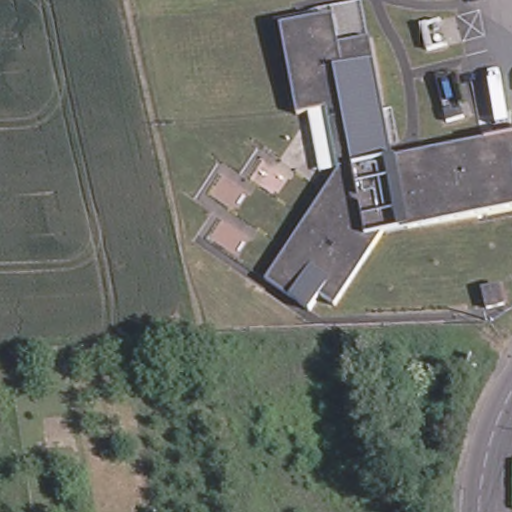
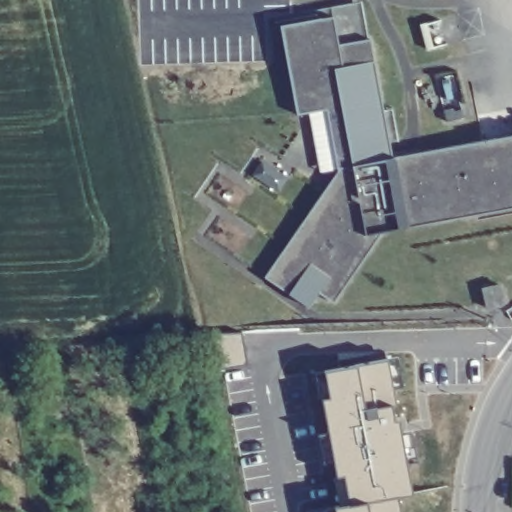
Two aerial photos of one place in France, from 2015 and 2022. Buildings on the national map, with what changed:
unchanged [(329,108),(300,113),(295,93),(291,93),(278,20),(291,18),(293,21),(326,16),(326,6),(363,0),(394,156),(512,135),(512,209),(380,232),(337,299),(323,290),(312,305),(269,275),(341,166),(329,108)]
new [(241,335),(246,368),(223,371),(218,339),(241,335)]
new [(308,511),(340,506),(335,479),(332,463),(324,464),(320,436),(330,433),(324,403),(317,403),(311,371),(389,360),(401,358),(406,388),(395,390),(402,433),(414,430),(419,463),(409,465),(414,493),(400,496),(403,512),(308,512),(308,511)]

